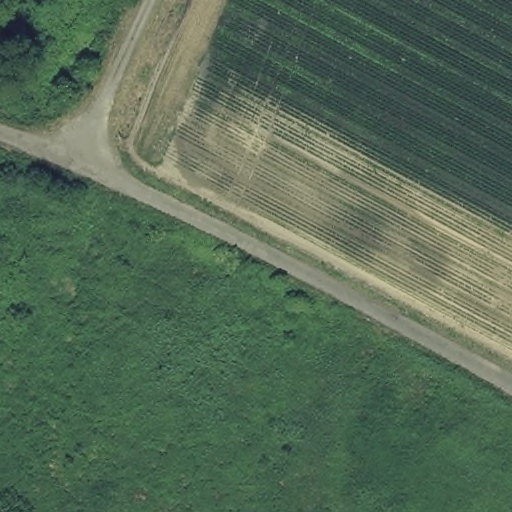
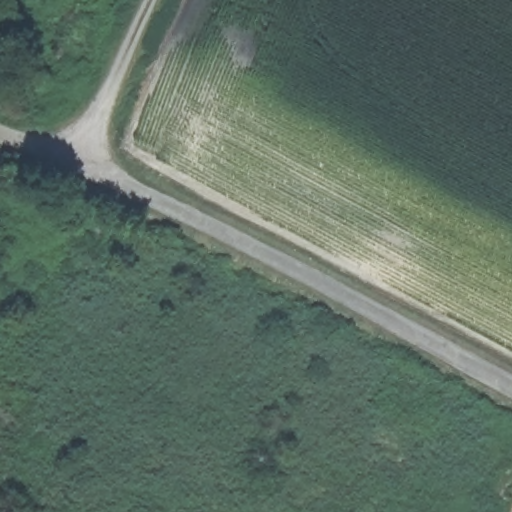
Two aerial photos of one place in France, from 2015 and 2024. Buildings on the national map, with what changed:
[]

